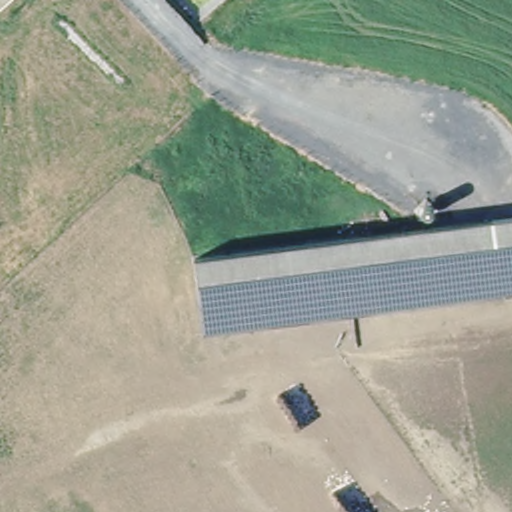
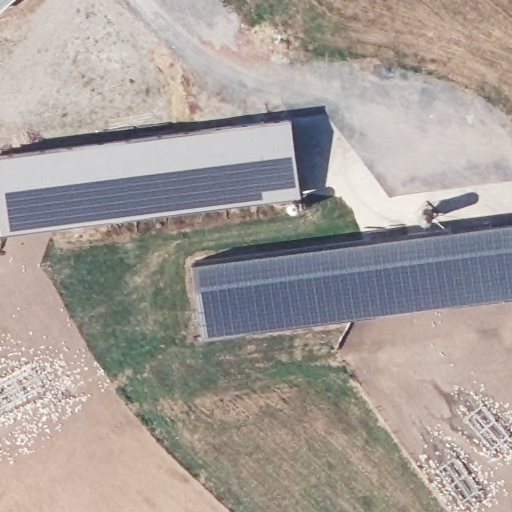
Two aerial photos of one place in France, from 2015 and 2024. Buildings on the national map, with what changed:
unchanged [(0,2),(0,0),(11,0),(4,7),(0,2)]
new [(290,118),(301,193),(271,197),(261,122),(290,118)]
new [(261,122),(271,197),(2,233),(0,214),(0,157),(261,122)]
unchanged [(192,269),(512,221),(512,296),(203,343),(192,269)]

